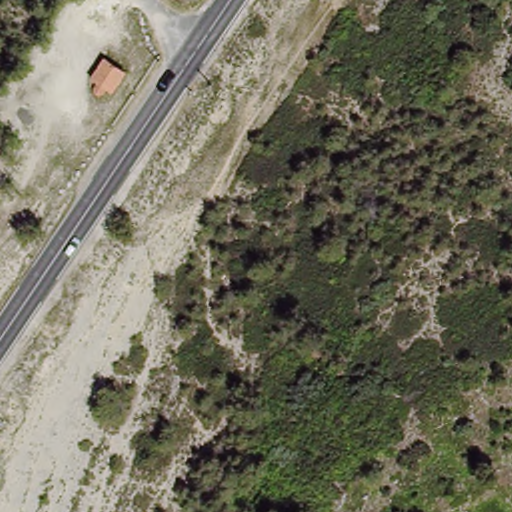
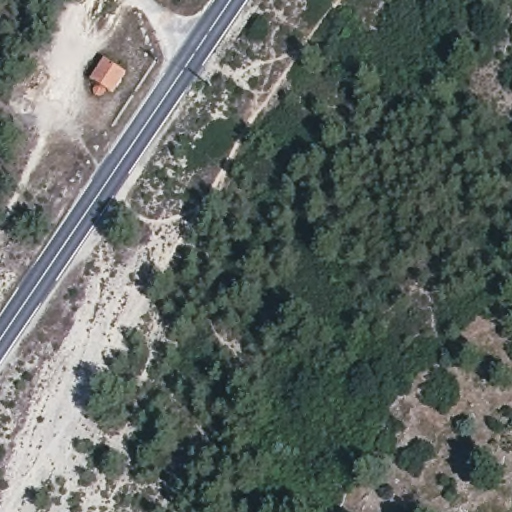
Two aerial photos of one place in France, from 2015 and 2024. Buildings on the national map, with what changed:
unchanged [(128,76),(112,97),(106,93),(101,98),(97,100),(95,98),(94,94),(96,91),(99,88),(91,83),(107,62),(128,76)]

